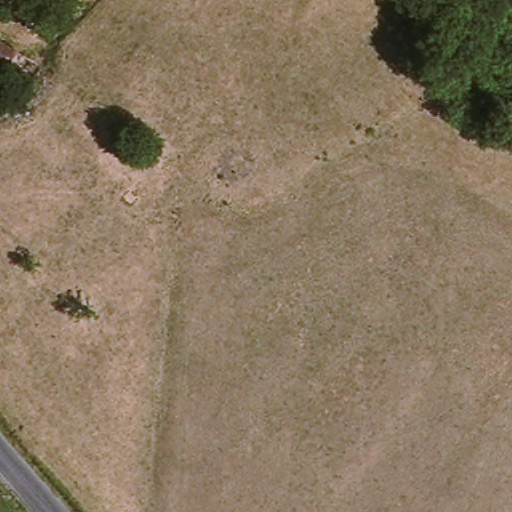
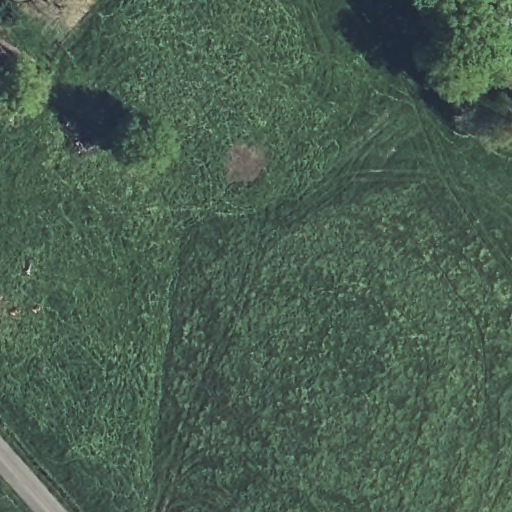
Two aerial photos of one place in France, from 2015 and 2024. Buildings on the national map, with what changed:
unchanged [(32,78),(0,60),(0,38),(42,62),(32,78)]
unchanged [(0,107),(0,84),(12,96),(0,107)]

